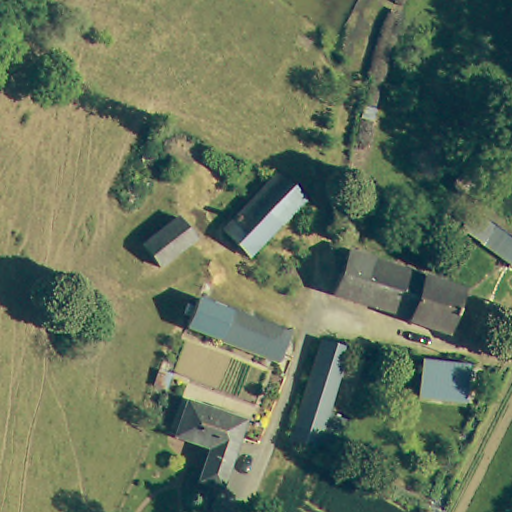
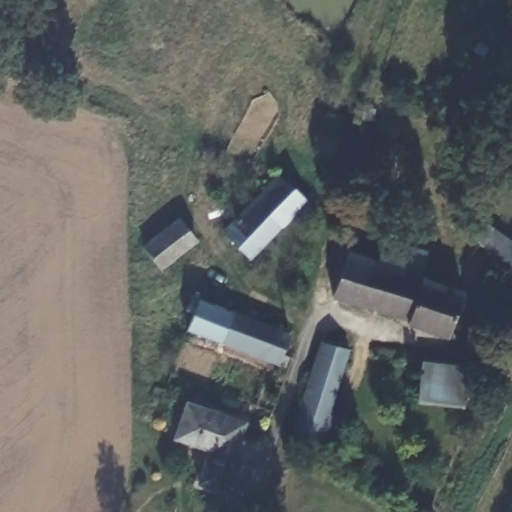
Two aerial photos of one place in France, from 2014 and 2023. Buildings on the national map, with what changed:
unchanged [(311,202),(246,249),(232,234),(230,227),(289,176),(311,202)]
unchanged [(210,238),(169,264),(167,265),(155,249),(172,227),(177,224),(210,238)]
unchanged [(349,250),(395,267),(470,291),(456,336),(332,297),(348,250),(349,250)]
unchanged [(505,297),(495,321),(488,319),(477,314),(486,290),(505,297)]
unchanged [(303,334),(303,338),(289,367),(186,333),(199,298),(303,334)]
unchanged [(350,353),(323,449),(297,439),(310,391),(324,346),(350,353)]
unchanged [(473,404),(440,402),(427,400),(428,361),(460,363),(473,364),(473,385),(473,404)]
unchanged [(255,421),(228,493),(207,487),(219,453),(171,435),(185,398),(255,421)]

